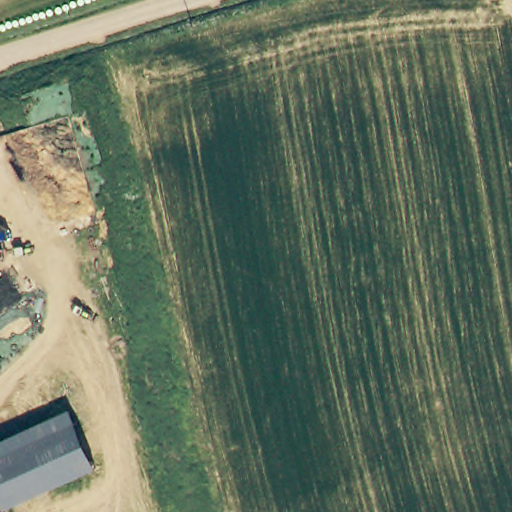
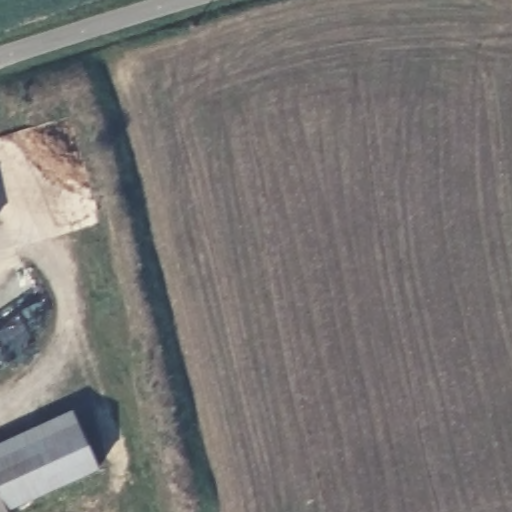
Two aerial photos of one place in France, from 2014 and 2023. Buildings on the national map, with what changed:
unchanged [(0,494),(0,443),(72,411),(100,469),(8,511),(0,494)]
unchanged [(8,512),(0,512),(0,494),(8,512)]

